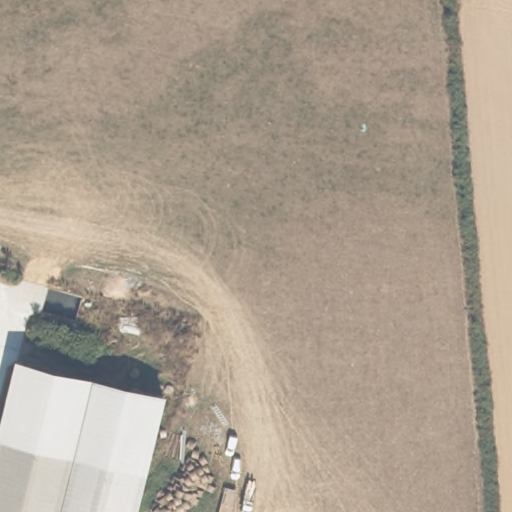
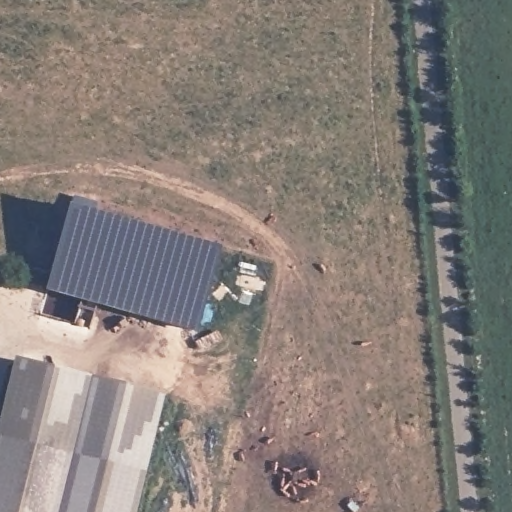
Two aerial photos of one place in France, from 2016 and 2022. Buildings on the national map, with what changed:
new [(221,247),(196,332),(46,291),(70,205),(221,247)]
unchanged [(166,392),(137,512),(0,512),(0,419),(16,357),(166,392)]

